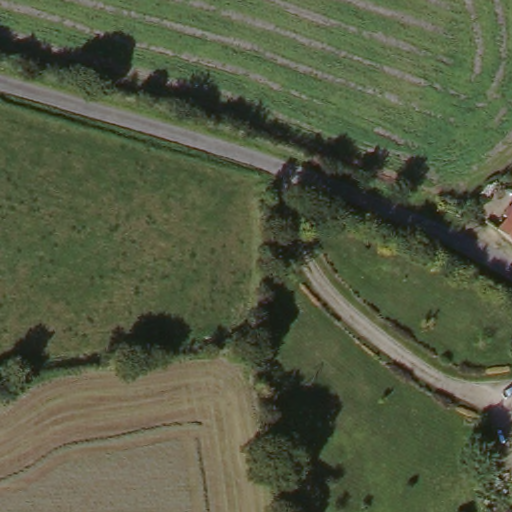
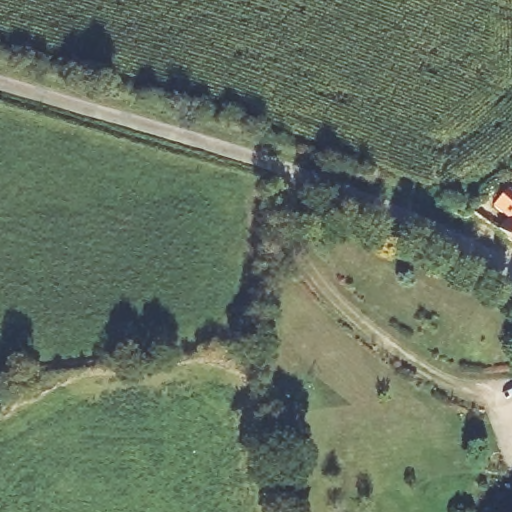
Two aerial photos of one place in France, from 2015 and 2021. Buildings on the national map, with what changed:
unchanged [(496,227),(512,208),(512,249),(489,236),(496,227)]

